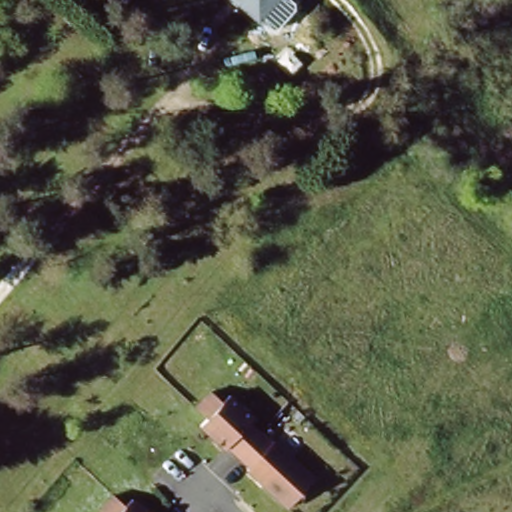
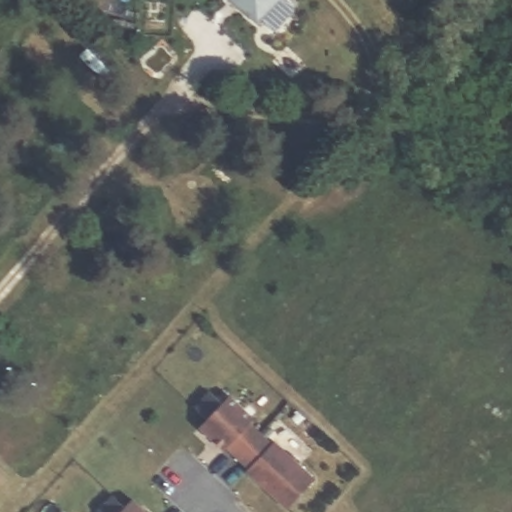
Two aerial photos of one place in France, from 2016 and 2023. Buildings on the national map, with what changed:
unchanged [(255,23),(229,0),(276,0),(255,23)]
unchanged [(222,404),(227,397),(247,413),(242,422),(270,445),(274,442),(309,478),(284,506),(245,472),(248,467),(224,439),(220,443),(197,425),(205,413),(194,404),(206,390),(222,404)]
unchanged [(128,498),(145,512),(98,512),(97,511),(110,495),(124,505),(128,498)]

